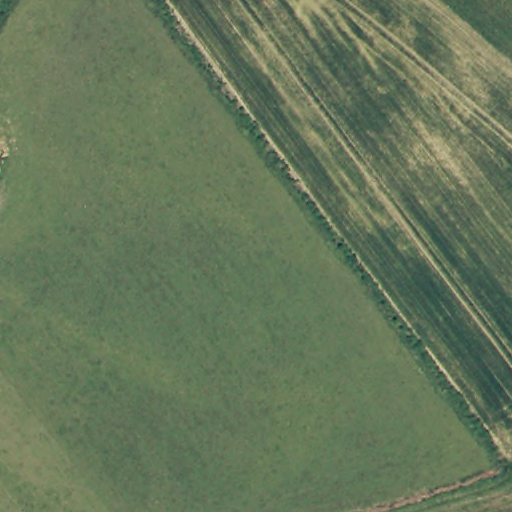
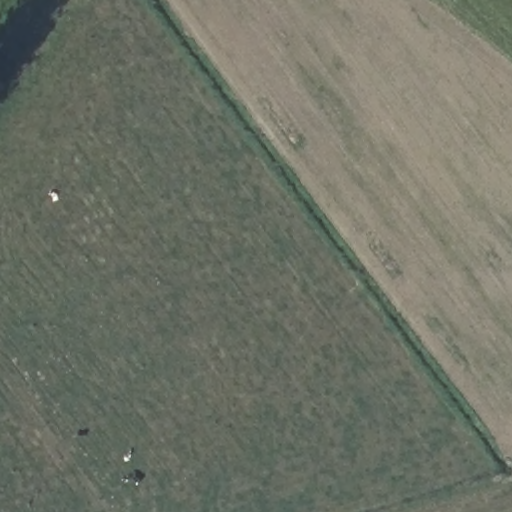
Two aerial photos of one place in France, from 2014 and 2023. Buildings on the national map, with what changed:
[]

